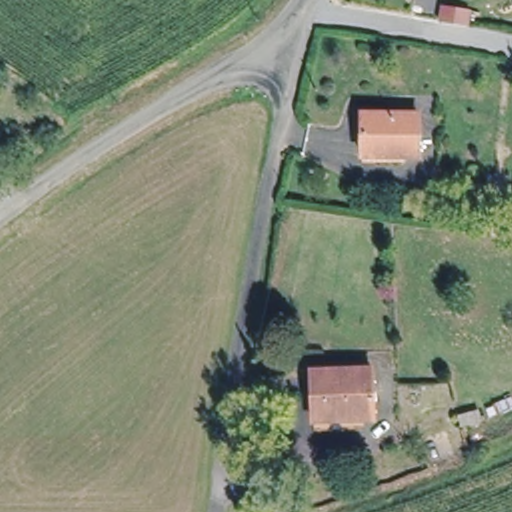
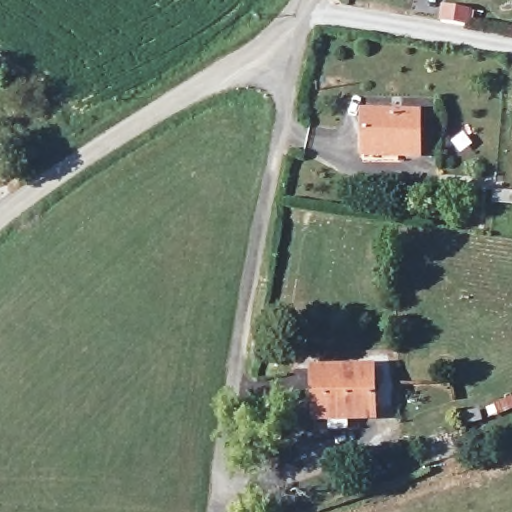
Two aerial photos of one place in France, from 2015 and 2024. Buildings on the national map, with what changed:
unchanged [(466,21),(440,16),(442,2),(468,7),(466,21)]
unchanged [(420,155),(362,154),(362,112),(420,113),(420,155)]
unchanged [(375,371),(373,417),(314,416),(315,371),(375,371)]

